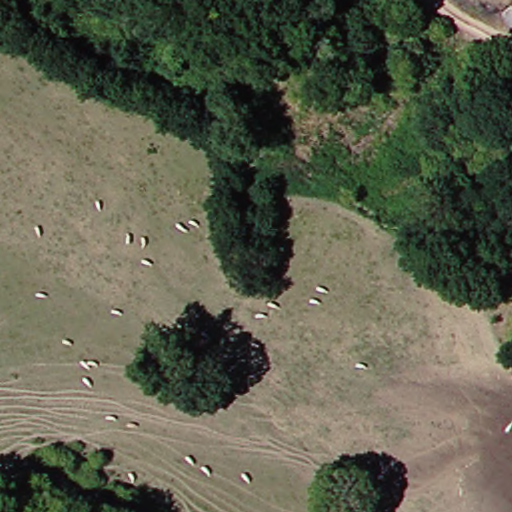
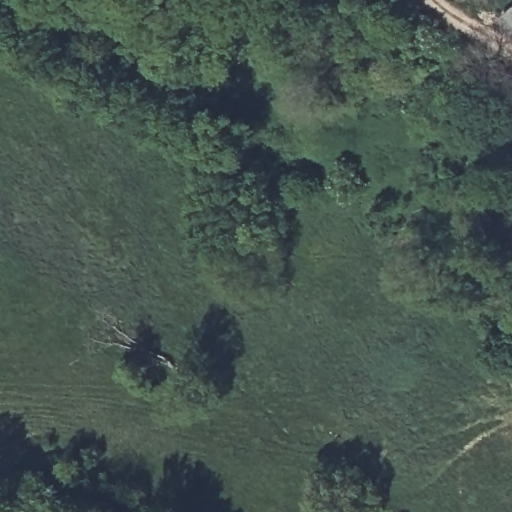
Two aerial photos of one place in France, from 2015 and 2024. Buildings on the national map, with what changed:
unchanged [(512,15),(512,35),(502,23),(512,15)]

